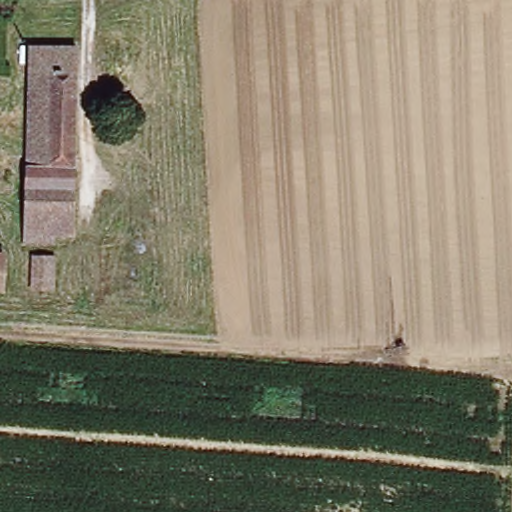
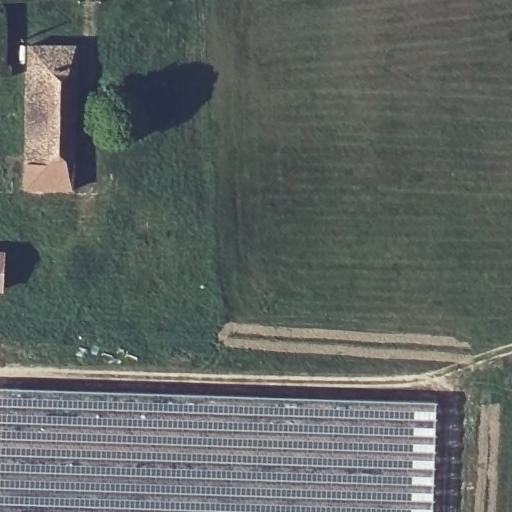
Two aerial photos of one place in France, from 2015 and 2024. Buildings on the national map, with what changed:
demolished [(76,229),(57,230),(57,239),(30,237),(23,45),(70,48),(76,229)]
new [(28,45),(76,45),(73,190),(24,189),(28,45)]
demolished [(160,305),(125,306),(118,233),(152,232),(160,305)]
unchanged [(0,292),(0,251),(1,252),(0,292)]
demolished [(44,260),(45,294),(23,293),(22,260),(44,260)]
new [(431,512),(0,512),(0,389),(435,403),(431,512)]

